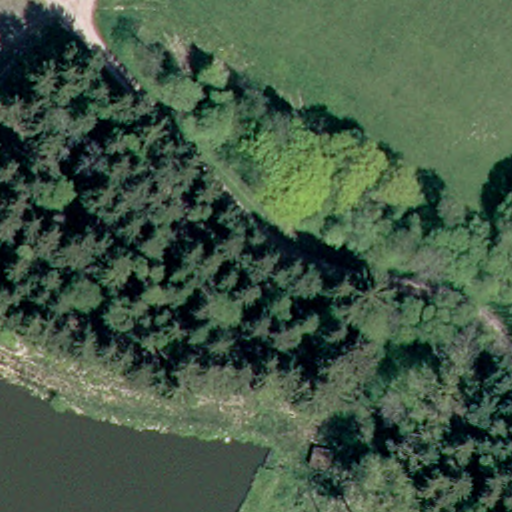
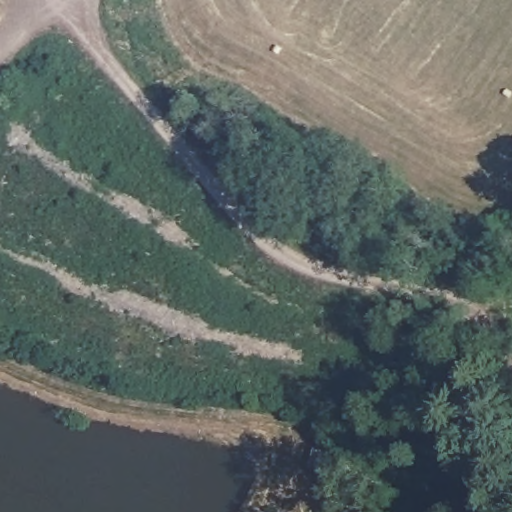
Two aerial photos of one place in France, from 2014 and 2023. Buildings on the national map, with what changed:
unchanged [(315,475),(321,453),(335,456),(330,478),(315,475)]

